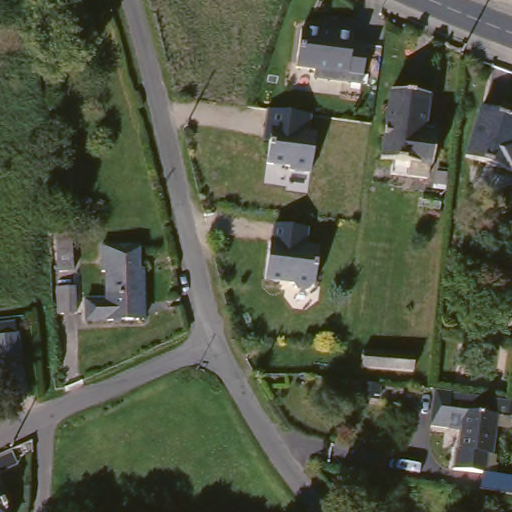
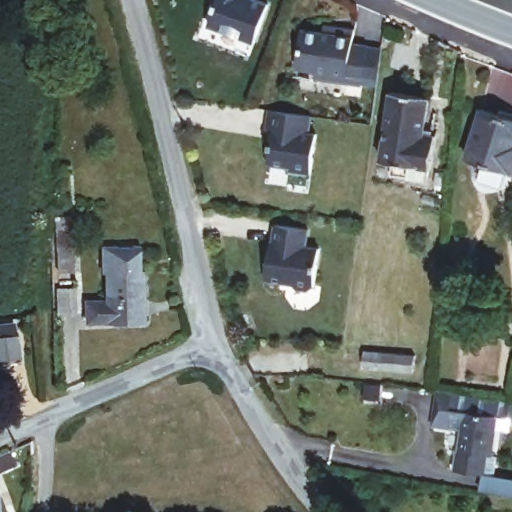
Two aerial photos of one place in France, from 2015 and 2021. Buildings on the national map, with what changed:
new [(260,0),(268,3),(255,41),(208,24),(217,0),(260,0)]
unchanged [(321,27),(321,21),(359,26),(358,39),(370,39),(364,83),(314,77),(314,69),(298,67),(303,26),(321,27)]
unchanged [(436,96),(432,131),(442,132),(438,165),(390,158),(397,90),(436,96)]
unchanged [(512,115),(512,168),(470,155),(484,106),(512,115)]
unchanged [(312,115),(309,131),(319,132),(314,174),(288,171),(289,166),(264,164),(270,109),(312,115)]
unchanged [(78,214),(82,268),(68,268),(63,216),(78,214)]
unchanged [(309,226),(306,244),(321,247),(316,286),(265,277),(272,223),(309,226)]
unchanged [(110,298),(109,271),(105,270),(106,268),(106,243),(143,242),(144,267),(147,267),(148,317),(91,318),(90,299),(110,298)]
unchanged [(83,285),(84,311),(67,312),(66,286),(83,285)]
unchanged [(27,348),(5,351),(3,333),(26,332),(27,348)]
unchanged [(424,355),(422,370),(373,364),(375,349),(424,355)]
unchanged [(387,396),(372,394),(374,382),(389,383),(387,396)]
unchanged [(506,393),(512,395),(512,411),(511,411),(501,410),(494,448),(490,447),(486,467),(457,463),(459,443),(462,443),(465,423),(436,418),(438,400),(440,383),(454,386),(492,392),(506,393)]
unchanged [(0,508),(2,512),(0,512),(0,508)]

